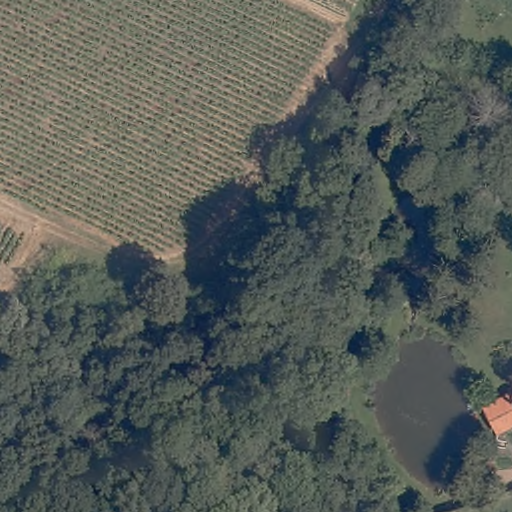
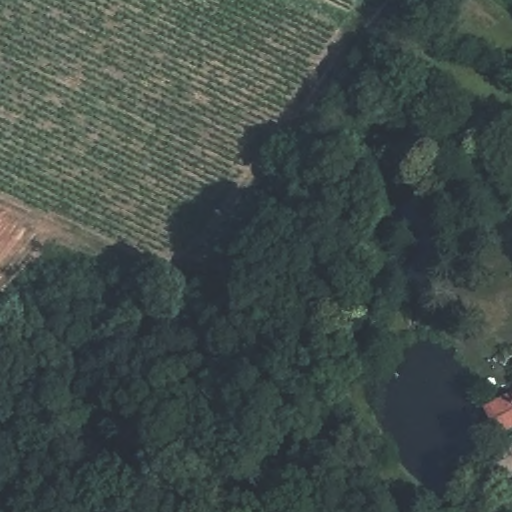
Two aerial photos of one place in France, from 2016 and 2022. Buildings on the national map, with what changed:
unchanged [(502,401),(512,396),(512,419),(502,401)]

